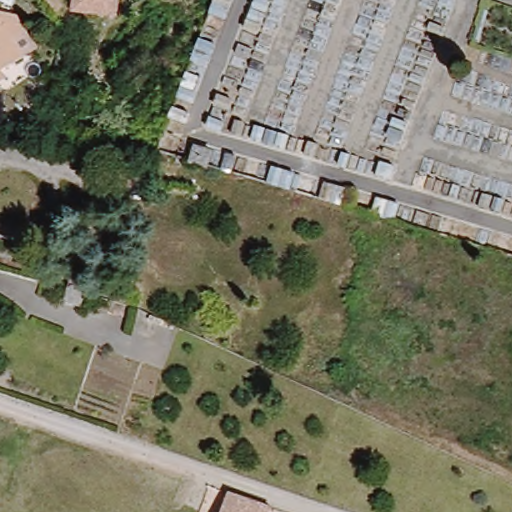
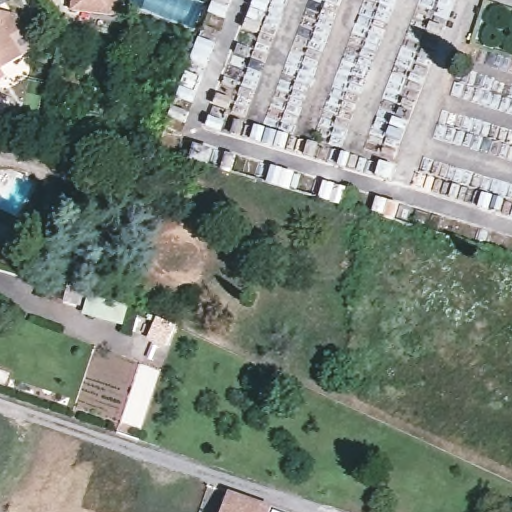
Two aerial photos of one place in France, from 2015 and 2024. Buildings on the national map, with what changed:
unchanged [(68,15),(70,0),(120,0),(118,19),(68,15)]
unchanged [(28,31),(15,40),(25,57),(4,72),(7,79),(0,84),(0,11),(20,16),(28,31)]
unchanged [(112,174),(137,179),(135,192),(110,187),(112,174)]
unchanged [(63,272),(80,277),(77,291),(72,303),(55,297),(59,287),(63,272)]
unchanged [(225,493),(272,510),(272,512),(219,512),(225,493)]

